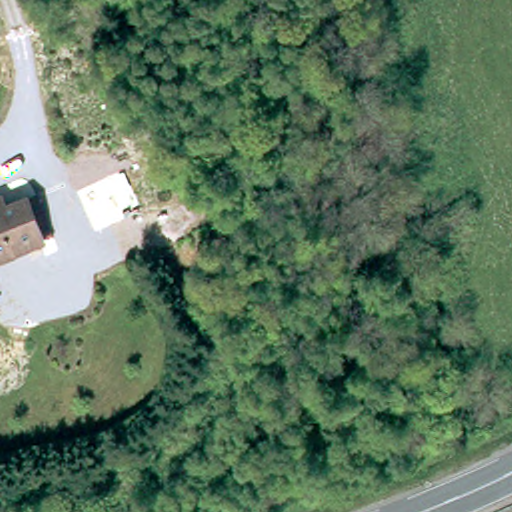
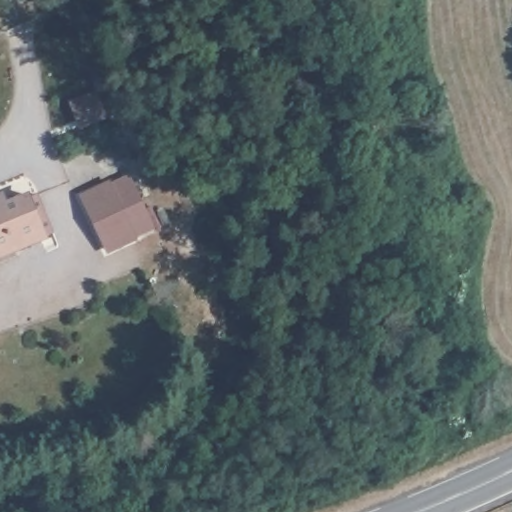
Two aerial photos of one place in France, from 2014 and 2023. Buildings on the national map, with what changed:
new [(155,231),(107,255),(80,196),(129,174),(155,231)]
unchanged [(29,195),(45,236),(0,256),(0,207),(29,195)]

